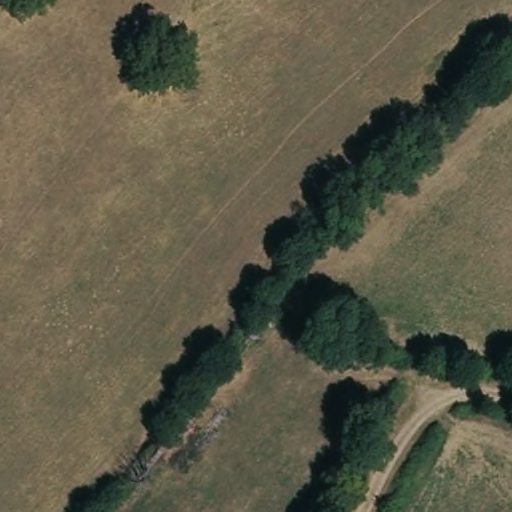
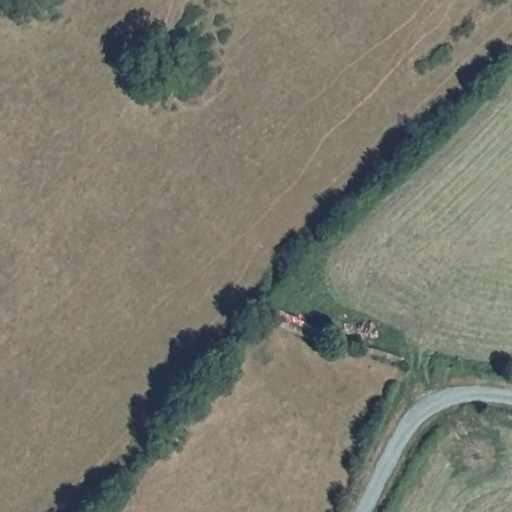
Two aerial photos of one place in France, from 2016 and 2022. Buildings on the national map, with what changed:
[]

